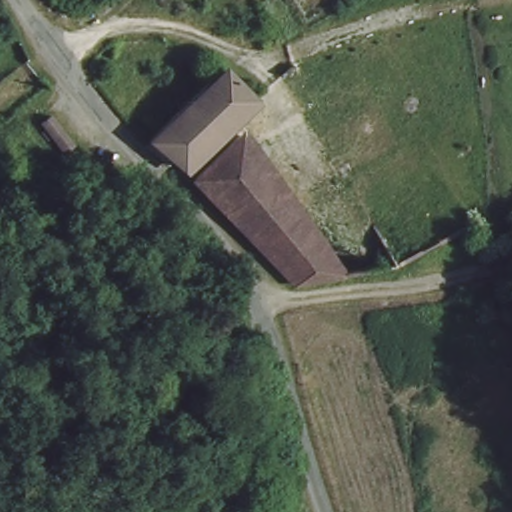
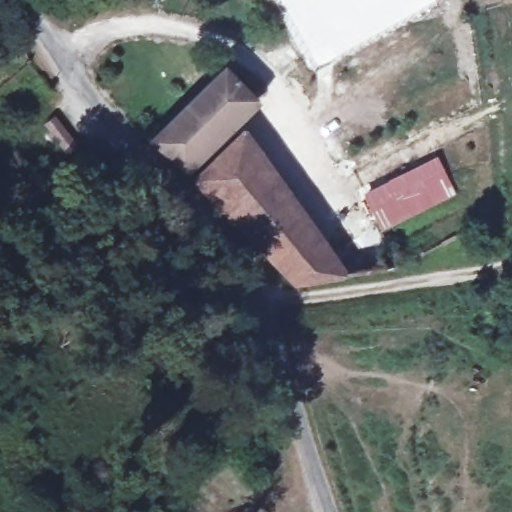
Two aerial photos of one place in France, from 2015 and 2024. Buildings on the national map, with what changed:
unchanged [(157,130),(217,65),(241,88),(182,157),(157,130)]
unchanged [(198,174),(242,125),(337,270),(297,277),(198,174)]
unchanged [(68,169),(60,178),(33,152),(42,143),(68,169)]
new [(437,155),(457,195),(382,234),(362,194),(437,155)]

